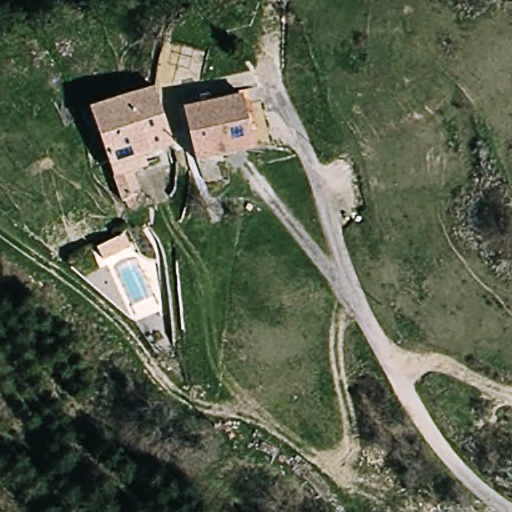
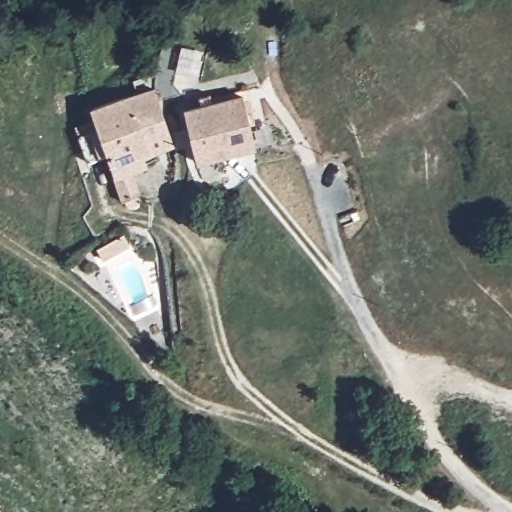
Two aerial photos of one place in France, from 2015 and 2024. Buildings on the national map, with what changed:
unchanged [(151,89),(170,149),(141,158),(144,171),(134,173),(139,196),(121,201),(89,110),(151,89)]
unchanged [(253,142),(198,167),(178,116),(235,91),(253,142)]

